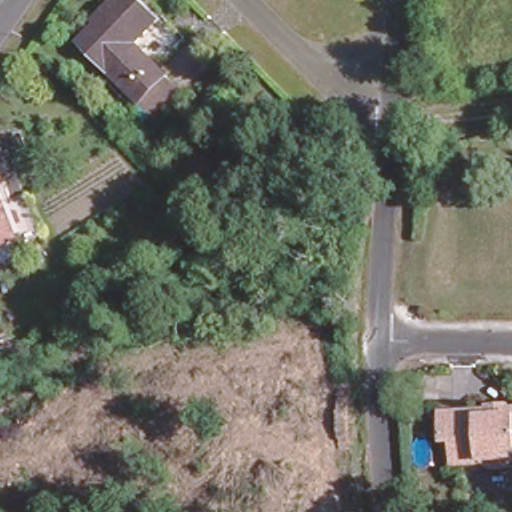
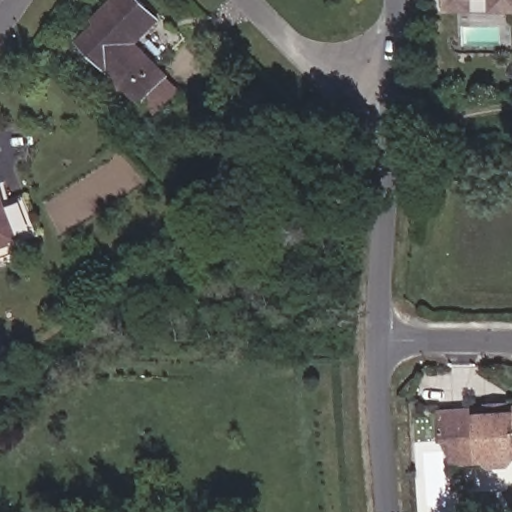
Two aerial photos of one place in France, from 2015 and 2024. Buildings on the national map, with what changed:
unchanged [(133,92),(76,29),(100,6),(95,0),(96,0),(143,0),(152,9),(128,33),(159,67),(173,81),(146,107),(133,92)]
new [(442,0),(472,0),(472,13),(442,13),(442,0)]
new [(488,14),(488,0),(512,0),(512,14),(488,14)]
unchanged [(28,229),(9,237),(6,233),(0,235),(0,196),(14,191),(28,229)]
unchanged [(489,461),(484,457),(453,457),(452,439),(444,439),(444,406),(486,406),(487,400),(508,400),(508,404),(512,404),(512,462),(511,463),(493,462),(489,461)]

